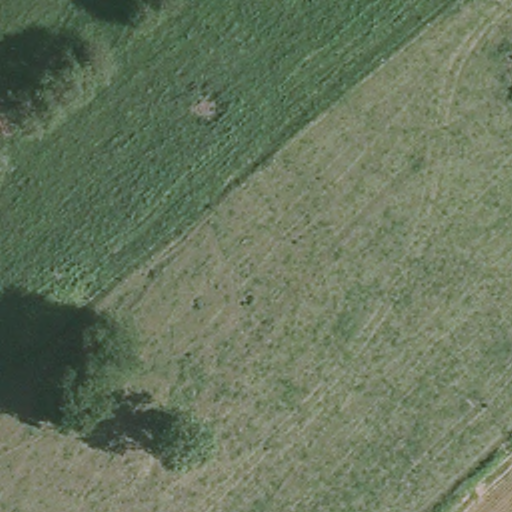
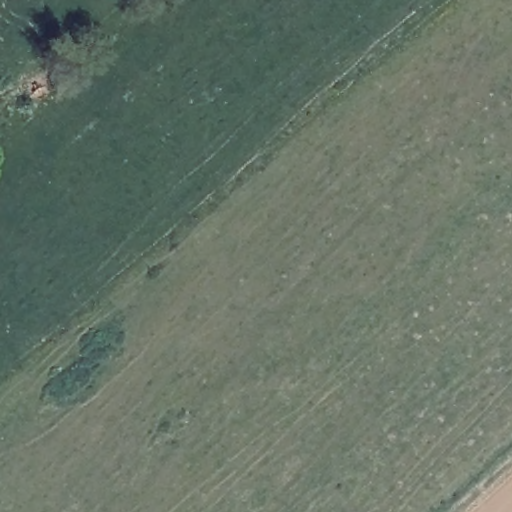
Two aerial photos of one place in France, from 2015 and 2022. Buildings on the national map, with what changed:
[]

